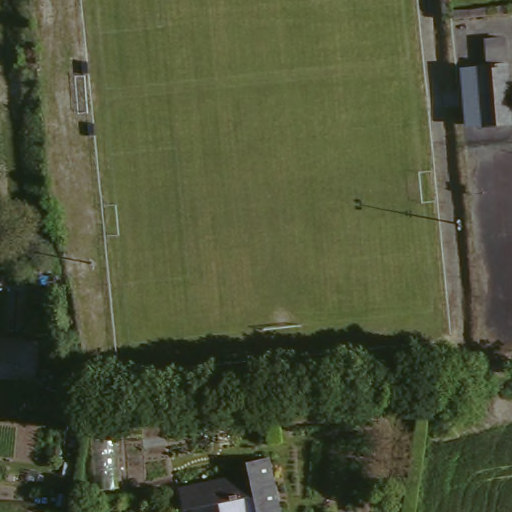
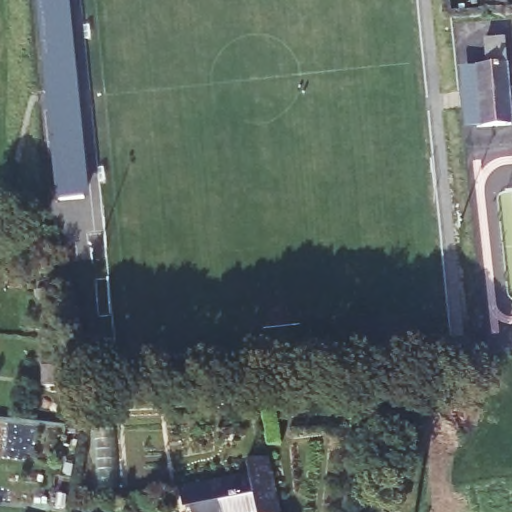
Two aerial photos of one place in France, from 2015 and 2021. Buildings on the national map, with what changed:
new [(62,47),(67,127),(72,127),(73,141),(54,142),(47,0),(72,0),(75,47),(62,47)]
unchanged [(484,39),(506,36),(512,90),(512,124),(488,126),(481,64),(487,63),(484,39)]
new [(73,141),(72,127),(67,127),(62,47),(75,47),(81,150),(56,152),(54,142),(73,141)]
unchanged [(488,126),(462,129),(454,66),(481,64),(488,126)]
new [(81,150),(84,192),(59,194),(56,152),(81,150)]
unchanged [(28,268),(29,255),(19,254),(19,242),(43,245),(41,269),(28,268)]
unchanged [(46,376),(46,356),(63,356),(62,377),(46,376)]
unchanged [(182,492),(253,478),(251,470),(274,465),(283,512),(186,512),(182,492)]

